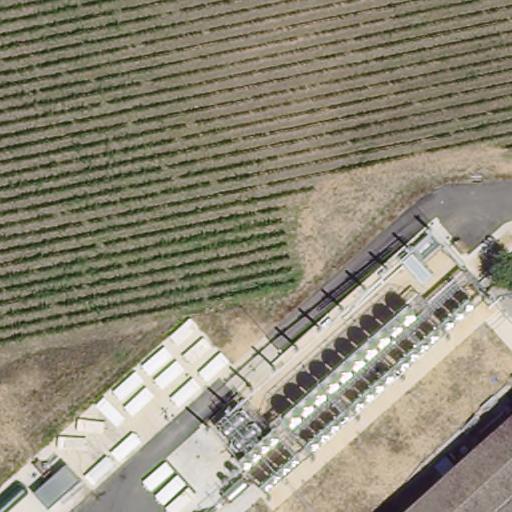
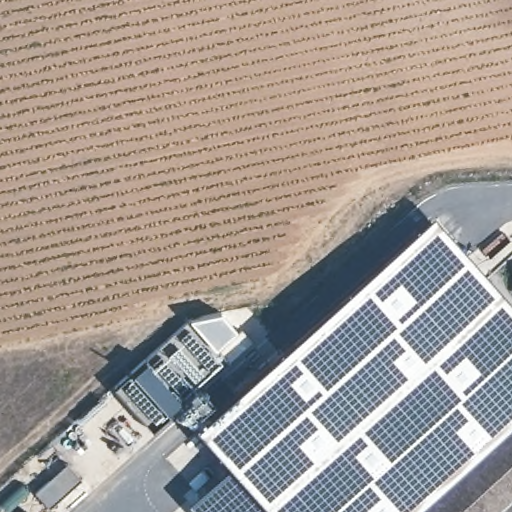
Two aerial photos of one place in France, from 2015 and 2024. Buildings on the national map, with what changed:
new [(196,424),(432,213),(512,305),(512,421),(508,425),(415,506),(408,512),(196,512),(188,502),(227,461),(196,424)]
unchanged [(512,274),(512,279),(510,275),(512,274)]
new [(113,386),(132,372),(146,361),(191,318),(223,313),(237,330),(216,347),(219,350),(242,330),(253,341),(196,390),(153,430),(113,386)]
unchanged [(508,425),(512,421),(512,512),(408,512),(415,506),(508,425)]
new [(37,491),(69,465),(82,481),(51,508),(37,491)]

